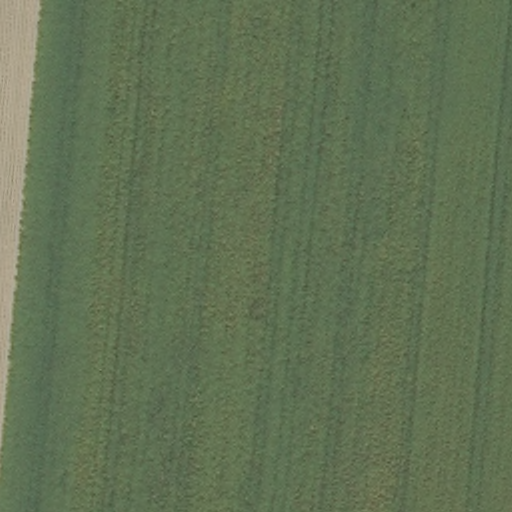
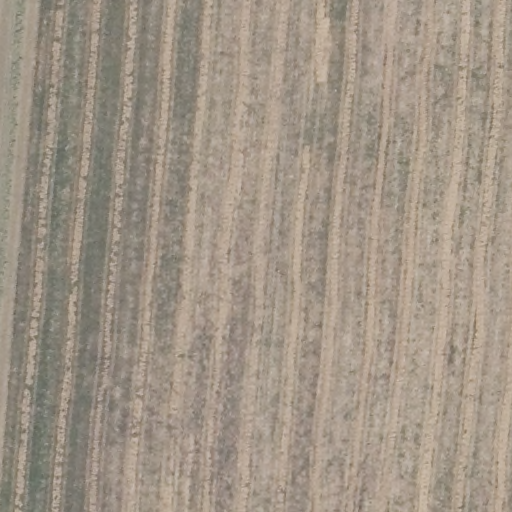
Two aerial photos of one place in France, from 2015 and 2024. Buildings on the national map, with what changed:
[]

